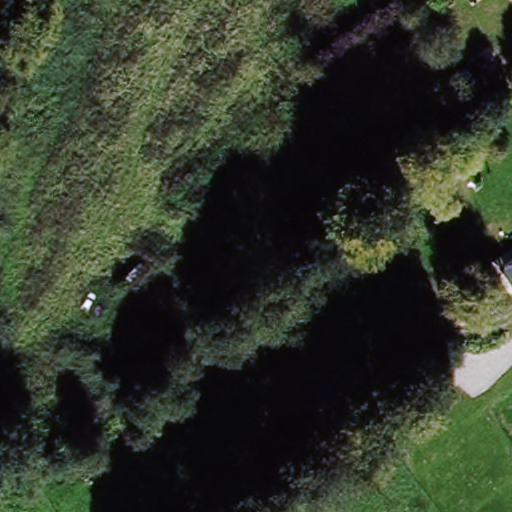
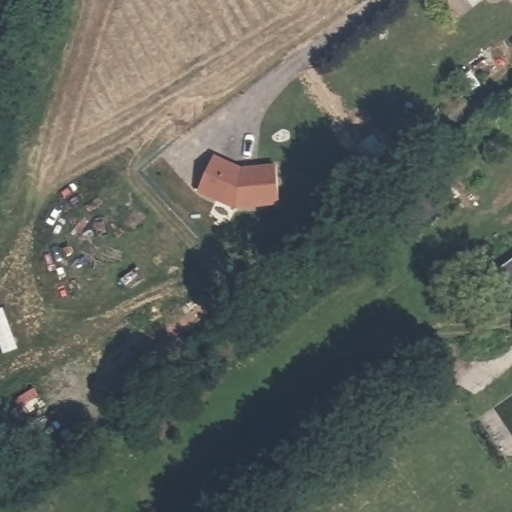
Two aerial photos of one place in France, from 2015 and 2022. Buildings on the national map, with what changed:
new [(242,167),(277,165),(278,207),(236,210),(197,193),(215,157),(242,167)]
unchanged [(371,342),(387,361),(352,390),(336,371),(371,342)]

